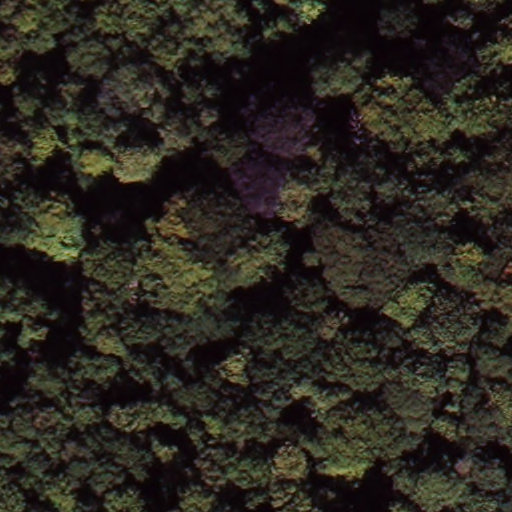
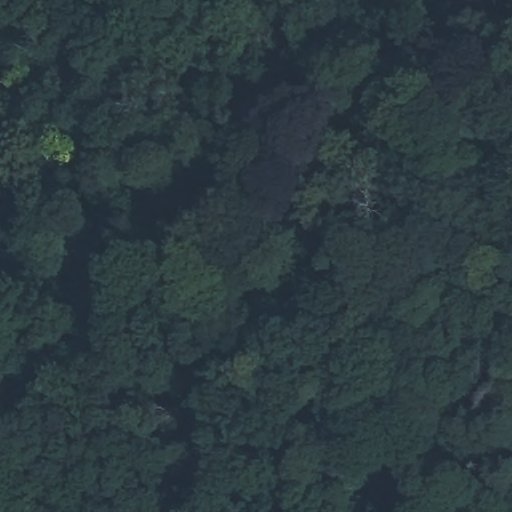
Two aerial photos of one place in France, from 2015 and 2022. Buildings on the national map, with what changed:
[]

